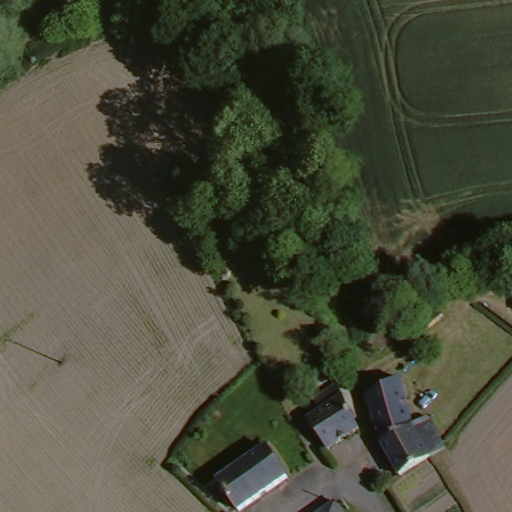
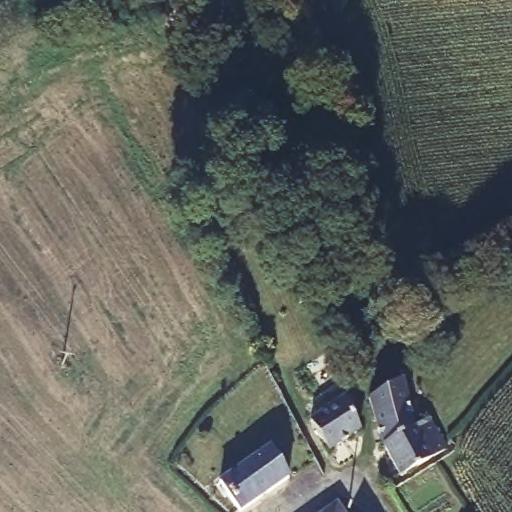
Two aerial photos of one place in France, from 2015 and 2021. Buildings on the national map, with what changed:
unchanged [(379,443),(375,432),(369,400),(397,383),(413,432),(428,425),(445,452),(442,456),(429,463),(410,475),(400,482),(379,443)]
unchanged [(361,438),(333,457),(315,427),(324,419),(317,407),(341,392),(361,435),(361,438)]
unchanged [(269,460),(286,482),(240,512),(234,512),(216,484),(265,451),(269,460)]
unchanged [(338,506),(342,512),(329,512),(338,506)]

